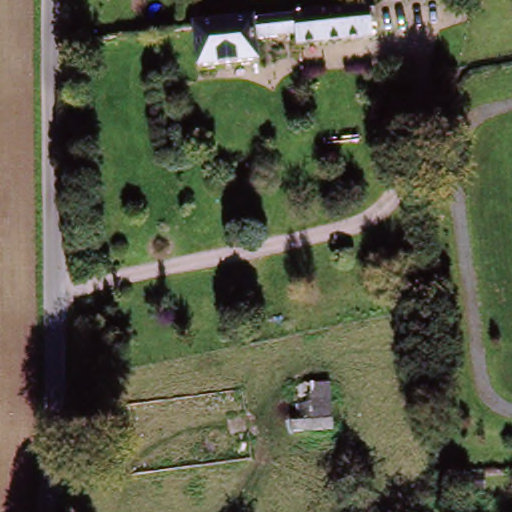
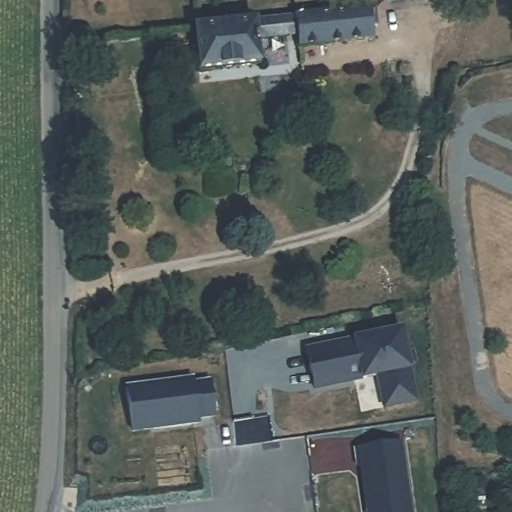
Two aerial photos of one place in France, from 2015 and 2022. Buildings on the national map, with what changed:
unchanged [(402,4),(401,0),(438,0),(402,4)]
unchanged [(257,42),(261,67),(191,76),(186,36),(200,34),(200,30),(200,29),(368,7),(369,10),(375,9),(378,29),(372,29),(372,38),(300,47),(298,37),(257,42)]
new [(426,400),(391,408),(382,373),(314,389),(304,346),(407,322),(426,400)]
new [(219,420),(201,423),(201,428),(129,436),(123,388),(195,379),(196,384),(214,382),(219,420)]
demolished [(285,387),(332,384),(338,434),(290,440),(285,387)]
new [(368,512),(362,465),(358,465),(357,448),(402,443),(411,512),(368,512)]

